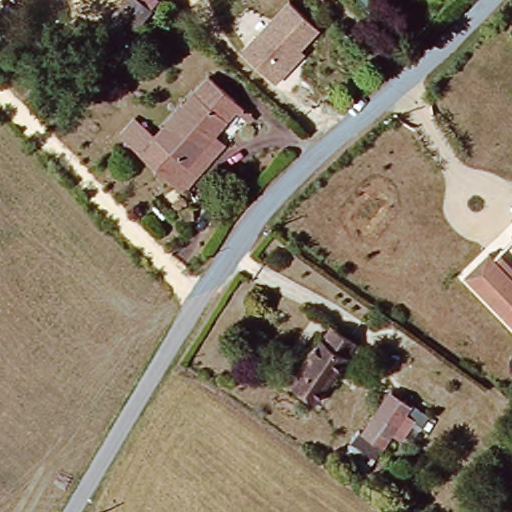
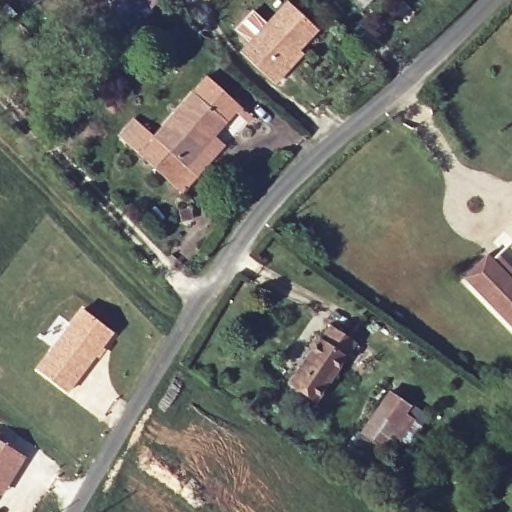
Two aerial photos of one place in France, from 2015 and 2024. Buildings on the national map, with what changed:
unchanged [(160,4),(120,50),(90,26),(77,0),(157,0),(160,4)]
unchanged [(279,86),(268,97),(236,66),(286,17),(314,45),(276,82),(279,86)]
unchanged [(181,202),(169,190),(111,128),(128,110),(161,138),(213,78),(246,106),(215,142),(225,151),(181,202)]
unchanged [(493,254),(496,257),(512,242),(512,321),(469,276),(493,254)]
new [(66,395),(34,371),(81,310),(113,333),(66,395)]
unchanged [(330,330),(352,345),(311,403),(284,385),(316,340),(320,343),(330,330)]
unchanged [(383,448),(362,435),(392,390),(412,405),(383,448)]
new [(24,458),(1,495),(0,494),(0,443),(24,458)]

